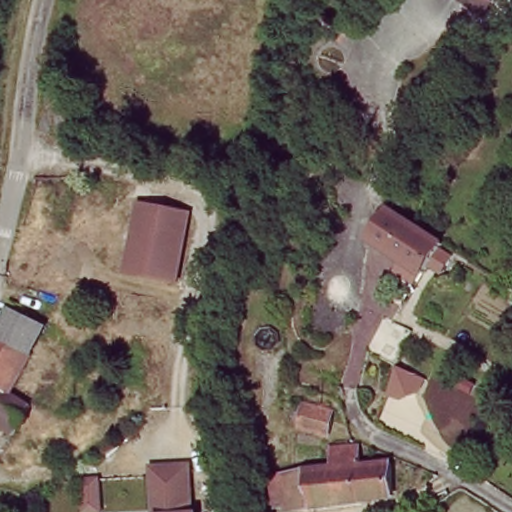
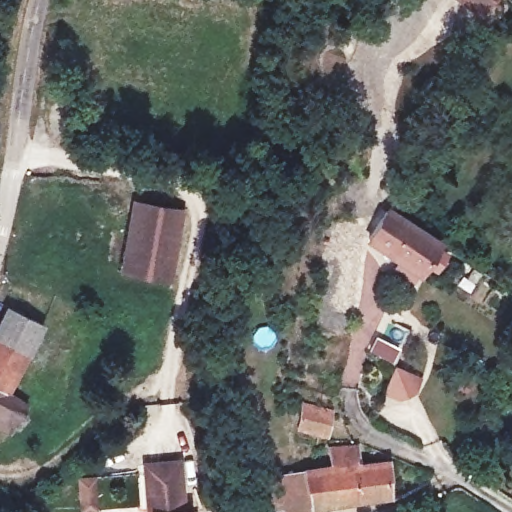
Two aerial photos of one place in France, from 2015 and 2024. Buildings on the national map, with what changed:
unchanged [(485,11),(469,0),(492,0),(485,11)]
unchanged [(134,197),(184,207),(174,278),(123,271),(134,197)]
unchanged [(367,240),(385,210),(439,245),(430,258),(419,275),(367,240)]
unchanged [(33,351),(0,336),(0,330),(12,307),(47,324),(33,351)]
unchanged [(11,392),(10,392),(0,387),(0,336),(33,351),(11,392)]
unchanged [(11,392),(32,402),(21,425),(0,415),(0,387),(10,392),(11,392)]
unchanged [(325,430),(301,422),(301,418),(298,417),(297,416),(297,414),(296,412),(296,410),(297,407),(299,406),(300,404),(301,403),(304,405),(305,401),(330,407),(325,430)]
unchanged [(289,425),(297,471),(283,473),(276,474),(265,430),(289,425)]
unchanged [(297,471),(325,467),(323,450),(359,445),(362,462),(390,458),(391,492),(287,507),(283,477),(283,473),(297,471)]
unchanged [(183,458),(183,507),(193,507),(193,512),(147,512),(143,458),(183,458)]

